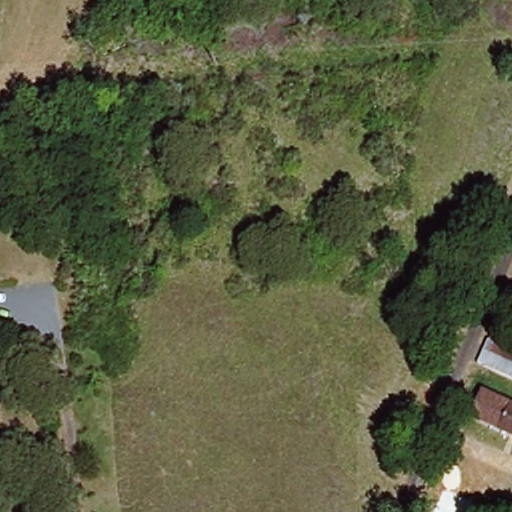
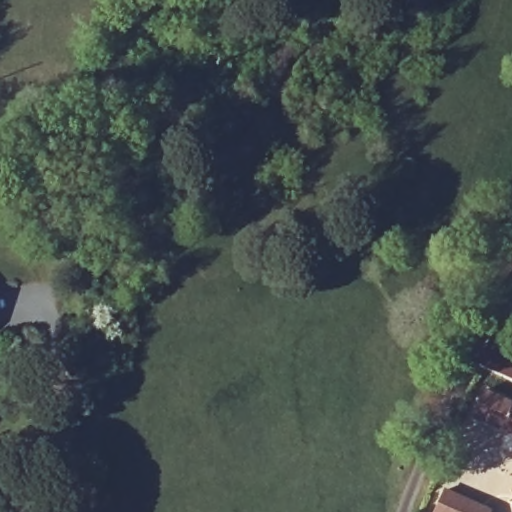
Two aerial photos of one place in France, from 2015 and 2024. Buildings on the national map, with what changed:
unchanged [(493,342),(512,350),(512,379),(483,367),(493,342)]
unchanged [(481,396),(512,410),(512,441),(470,422),(481,396)]
new [(491,512),(432,512),(442,488),(492,509),(491,512)]

